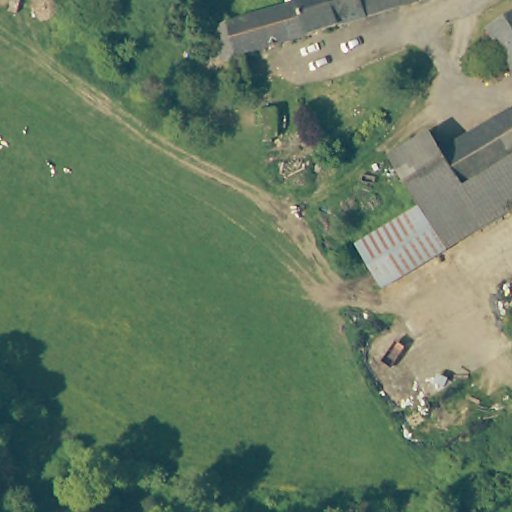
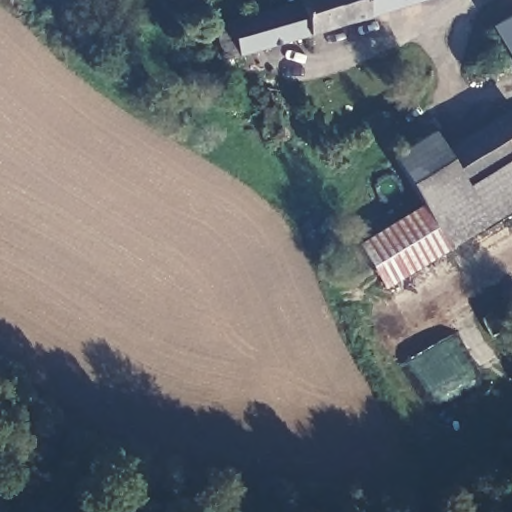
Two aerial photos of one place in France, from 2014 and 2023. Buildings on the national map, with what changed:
unchanged [(304,34),(242,53),(234,55),(220,61),(209,25),(292,1),(292,0),(414,0),(332,25),(304,34)]
unchanged [(512,14),(512,59),(492,25),(512,14)]
unchanged [(263,136),(261,109),(277,108),(278,135),(263,136)]
unchanged [(358,249),(422,210),(392,161),(431,137),(445,159),(512,119),(512,214),(384,293),(358,249)]

